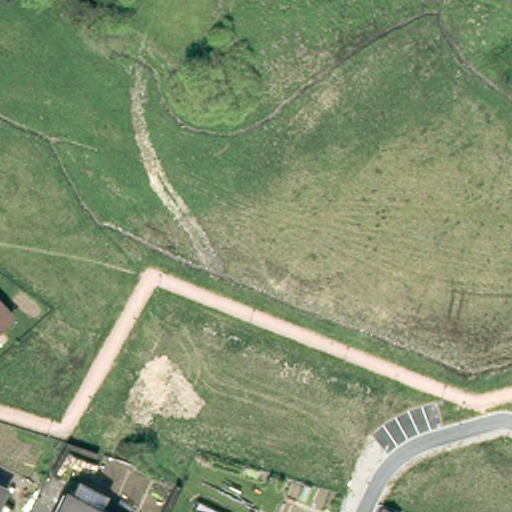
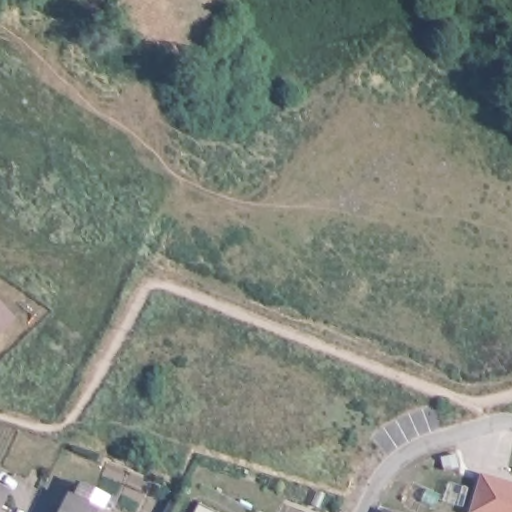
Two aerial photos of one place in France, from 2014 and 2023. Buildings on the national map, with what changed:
unchanged [(5,320),(0,325),(0,310),(7,318),(5,320)]
new [(512,481),(512,512),(468,512),(481,472),(512,481)]
unchanged [(68,497),(74,500),(83,484),(110,499),(102,512),(61,512),(68,497)]
unchanged [(0,507),(0,485),(9,489),(0,507)]

